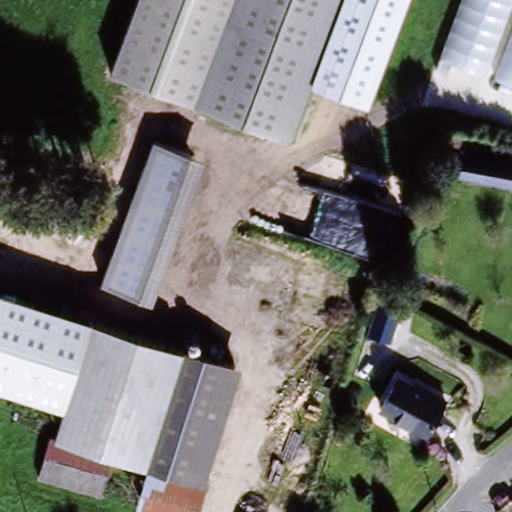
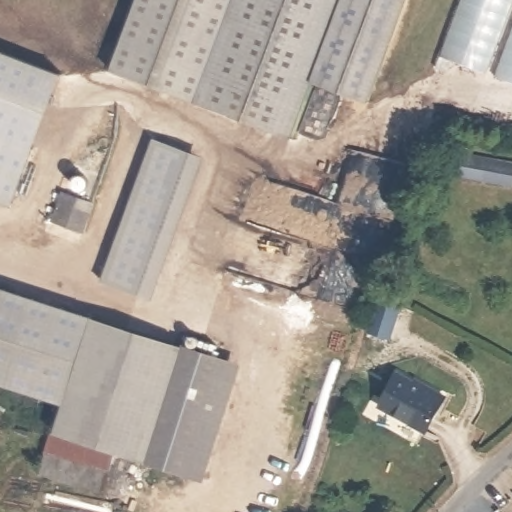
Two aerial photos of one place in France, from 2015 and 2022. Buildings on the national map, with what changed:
unchanged [(215,107),(110,73),(137,0),(258,0),(215,107)]
unchanged [(215,107),(258,0),(343,0),(287,136),(215,107)]
unchanged [(309,82),(343,0),(407,0),(368,105),(309,82)]
unchanged [(438,59),(460,0),(512,0),(512,5),(486,76),(438,59)]
unchanged [(512,32),(512,85),(495,78),(512,32)]
new [(64,75),(13,207),(0,202),(0,51),(64,75)]
unchanged [(155,301),(102,283),(153,140),(204,158),(155,301)]
unchanged [(451,157),(512,168),(512,191),(447,179),(451,157)]
unchanged [(66,404),(0,383),(0,291),(91,320),(66,404)]
unchanged [(215,374),(179,362),(147,461),(111,456),(55,442),(91,320),(240,366),(234,381),(215,374)]
unchanged [(234,381),(200,485),(184,479),(145,467),(179,362),(215,374),(234,381)]
unchanged [(426,395),(445,405),(428,438),(379,411),(395,381),(424,397),(426,395)]
unchanged [(111,456),(101,494),(37,478),(47,440),(111,456)]

